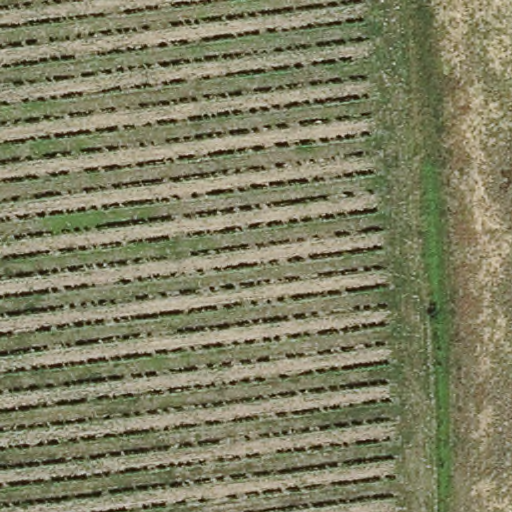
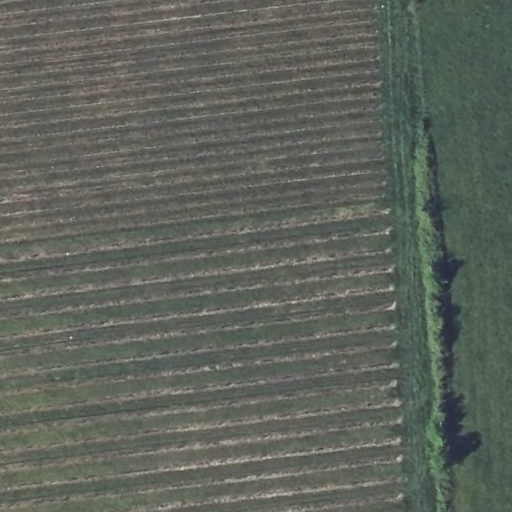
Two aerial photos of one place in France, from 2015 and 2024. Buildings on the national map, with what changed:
[]

